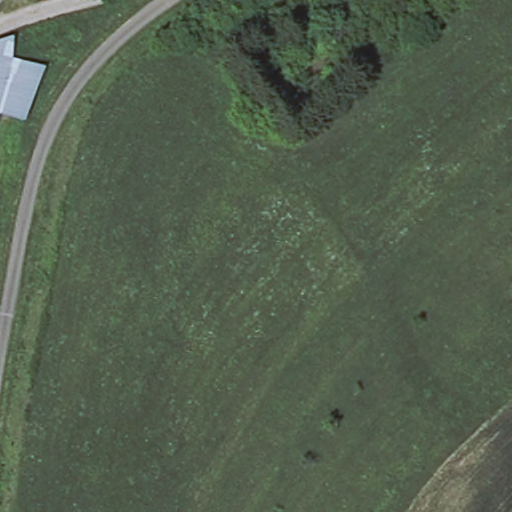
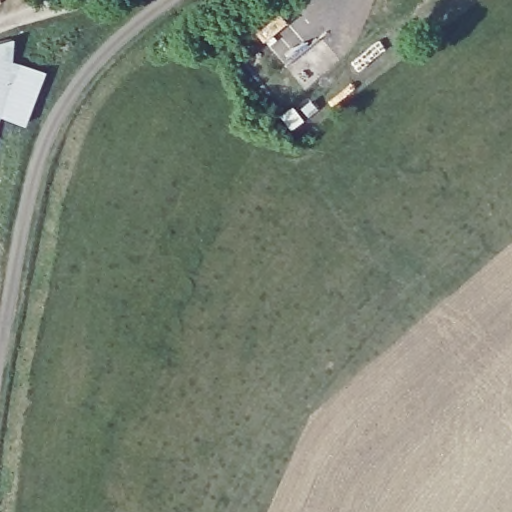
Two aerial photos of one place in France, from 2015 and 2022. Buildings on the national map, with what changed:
unchanged [(7,60),(13,62),(0,99),(0,41),(7,39),(7,60)]
unchanged [(20,122),(0,116),(0,99),(13,62),(37,69),(20,122)]

